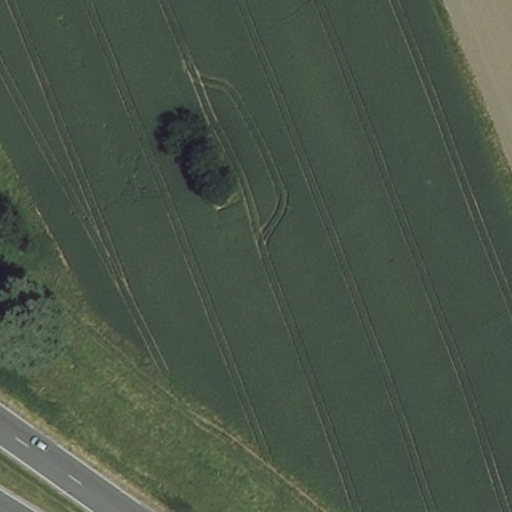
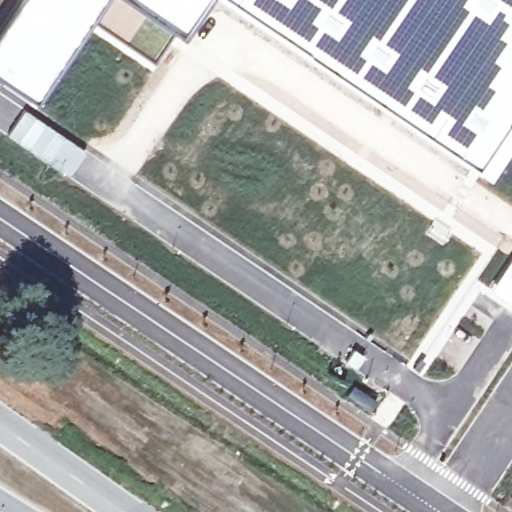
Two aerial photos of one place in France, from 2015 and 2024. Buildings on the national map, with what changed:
new [(23,0),(3,26),(10,32),(0,45),(0,19),(12,0),(23,0)]
new [(27,0),(32,0),(30,2),(27,0)]
new [(60,52),(57,50),(67,35),(60,30),(60,26),(60,21),(63,9),(53,0),(99,0),(88,16),(60,52)]
new [(128,0),(130,1),(143,11),(125,39),(88,16),(99,0),(128,0)]
new [(128,0),(130,0),(130,1),(128,0)]
new [(134,0),(199,0),(177,30),(134,0)]
new [(472,170),(410,124),(227,0),(512,0),(512,113),(508,118),(472,170)]
new [(22,107),(84,150),(66,175),(4,132),(22,107)]
new [(512,118),(511,120),(508,118),(512,113),(512,118)]
new [(512,305),(490,288),(512,254),(512,305)]

